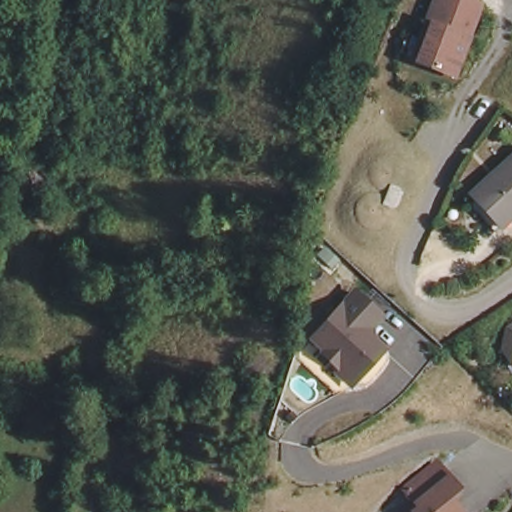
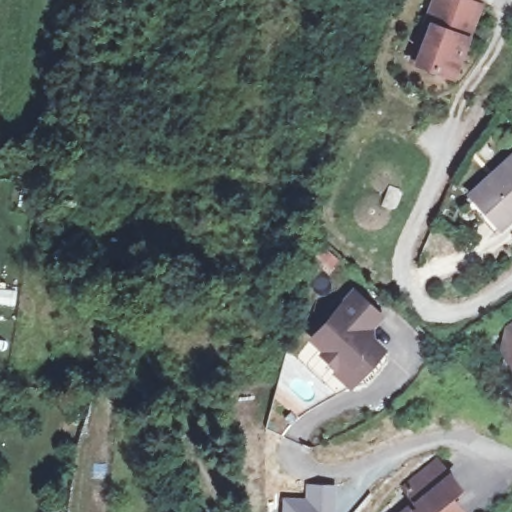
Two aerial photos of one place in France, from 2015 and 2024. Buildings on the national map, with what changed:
unchanged [(433,20),(440,0),(481,0),(479,6),(484,8),(458,78),(422,65),(417,63),(433,20)]
unchanged [(501,229),(490,216),(469,194),(512,154),(512,211),(511,212),(512,213),(512,219),(501,229)]
unchanged [(340,364),(321,346),(326,340),(314,329),(352,287),(378,310),(362,327),(380,344),(361,364),(347,378),(340,364)]
unchanged [(502,356),(499,349),(498,349),(506,328),(512,324),(512,359),(502,356)]
unchanged [(406,481),(432,458),(454,482),(443,491),(455,505),(447,512),(397,512),(417,494),(406,481)]
new [(335,512),(282,512),(282,495),(304,496),(305,483),(336,484),(335,512)]

